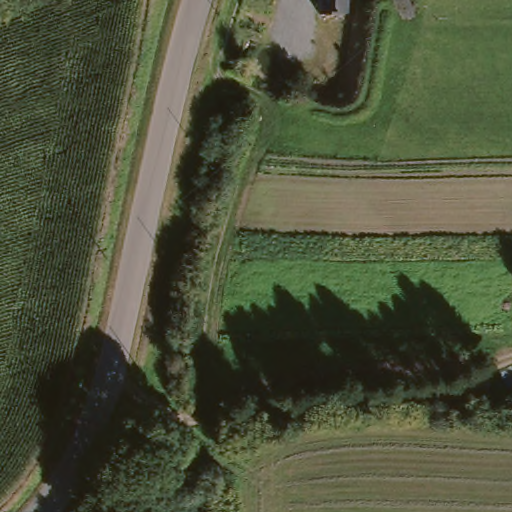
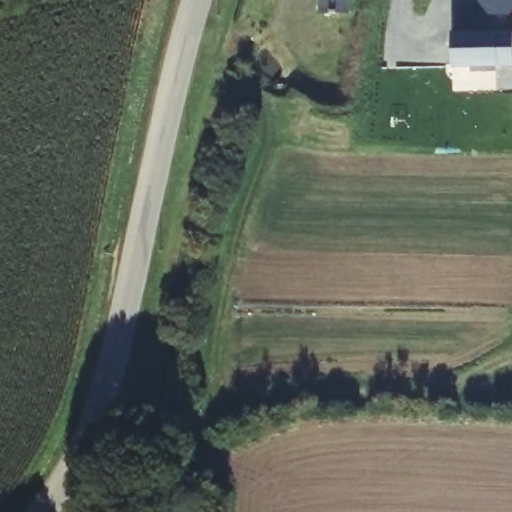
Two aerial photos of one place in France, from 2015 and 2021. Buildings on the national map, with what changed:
unchanged [(319,19),(314,0),(347,0),(349,9),(319,19)]
new [(512,0),(512,16),(481,15),(482,0),(512,0)]
new [(512,32),(512,66),(493,65),(493,70),(469,69),(469,64),(451,63),(452,30),(512,32)]

